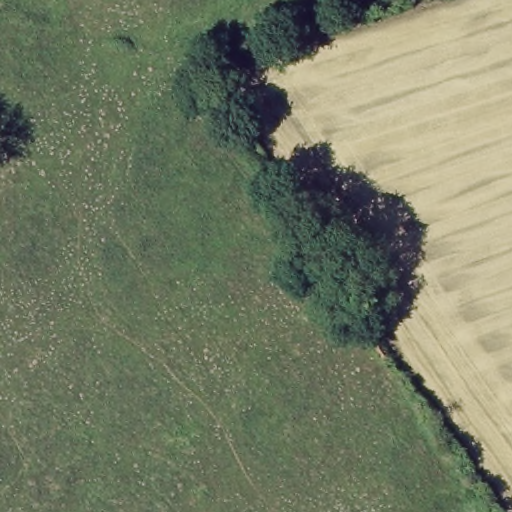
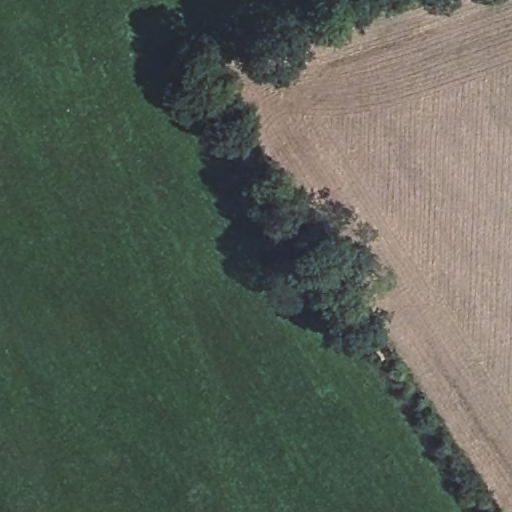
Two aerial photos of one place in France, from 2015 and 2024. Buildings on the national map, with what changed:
[]

